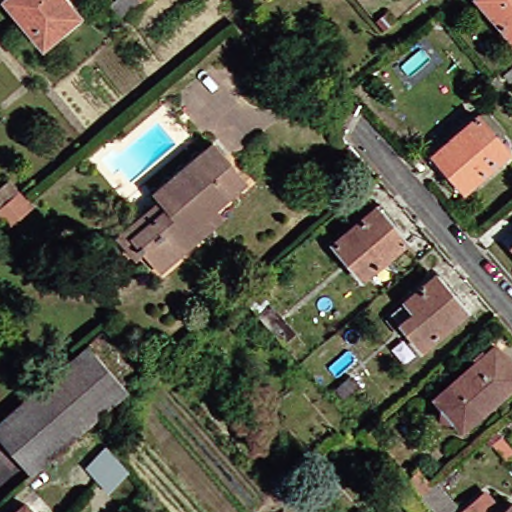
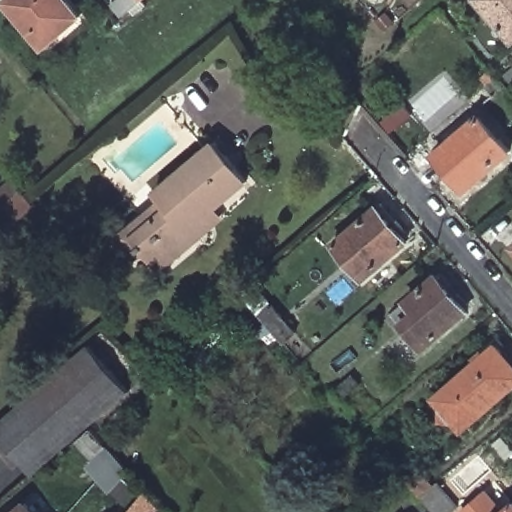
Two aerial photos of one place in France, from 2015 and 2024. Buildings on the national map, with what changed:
unchanged [(81,17),(44,48),(10,6),(6,1),(7,0),(67,0),(81,17)]
unchanged [(145,1),(144,0),(146,0),(145,1)]
unchanged [(483,0),(512,0),(512,35),(483,0)]
unchanged [(379,25),(366,37),(347,13),(360,3),(379,25)]
unchanged [(435,154),(481,116),(511,151),(466,190),(435,154)]
unchanged [(123,236),(165,200),(158,191),(218,141),(252,183),(221,209),(229,218),(199,242),(165,270),(150,252),(141,258),(123,236)]
unchanged [(14,187),(21,195),(29,205),(18,216),(9,206),(0,214),(0,199),(1,197),(14,187)]
unchanged [(379,206),(384,203),(398,219),(393,223),(410,242),(366,280),(336,245),(379,206)]
unchanged [(394,312),(437,275),(468,311),(424,348),(394,312)]
unchanged [(284,343),(260,316),(249,303),(261,292),(272,305),(296,333),(284,343)]
unchanged [(445,418),(446,405),(439,396),(484,358),(479,351),(484,346),(491,341),(496,348),(501,344),(512,357),(512,392),(467,430),(458,419),(445,418)]
unchanged [(36,474),(0,432),(0,423),(92,343),(133,391),(36,474)]
unchanged [(356,376),(363,384),(347,397),(341,389),(356,376)]
unchanged [(499,435),(512,450),(512,470),(490,444),(499,435)]
unchanged [(110,487),(87,462),(106,446),(128,471),(110,487)]
unchanged [(422,512),(416,512),(416,511),(398,492),(407,484),(422,501),(425,504),(427,507),(422,512)]
unchanged [(458,512),(437,512),(425,498),(441,485),(462,508),(458,512)]
unchanged [(505,512),(466,512),(489,493),(505,512)]
new [(129,512),(146,494),(165,512),(129,512)]
unchanged [(33,512),(17,512),(26,504),(33,512)]
unchanged [(506,512),(512,507),(512,512),(506,512)]

